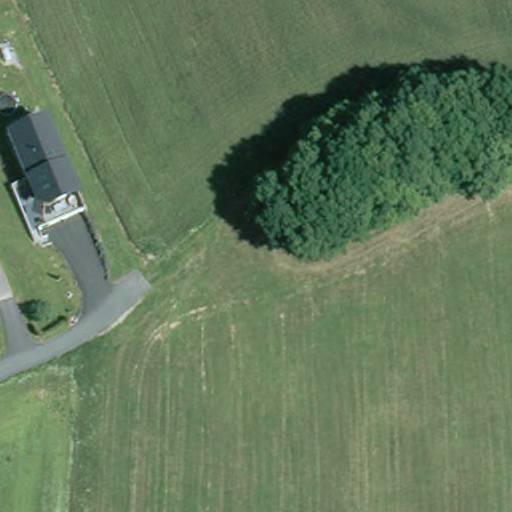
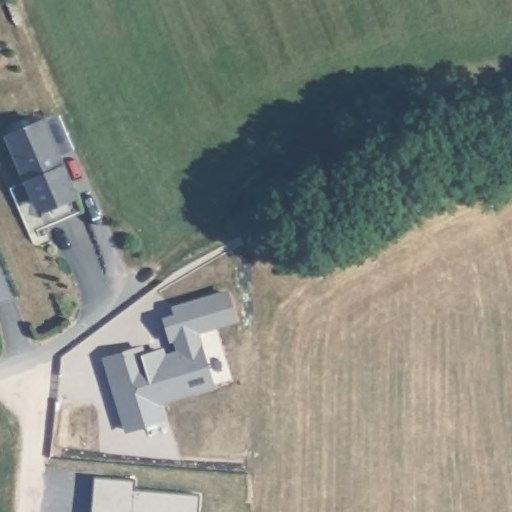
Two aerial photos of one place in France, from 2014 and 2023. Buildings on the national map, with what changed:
unchanged [(40,222),(30,197),(1,127),(39,111),(70,186),(79,206),(40,222)]
new [(141,344),(144,352),(163,346),(165,353),(183,348),(178,333),(171,335),(166,316),(177,312),(174,305),(227,289),(234,312),(223,315),(224,320),(197,328),(213,382),(158,399),(163,416),(126,426),(105,355),(141,344)]
new [(134,479),(133,488),(199,493),(198,512),(90,512),(93,476),(134,479)]

